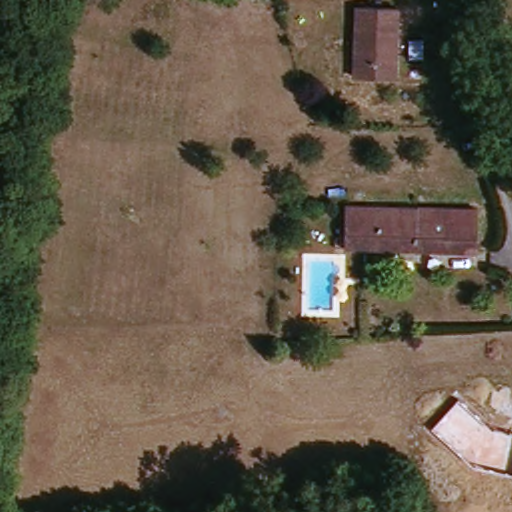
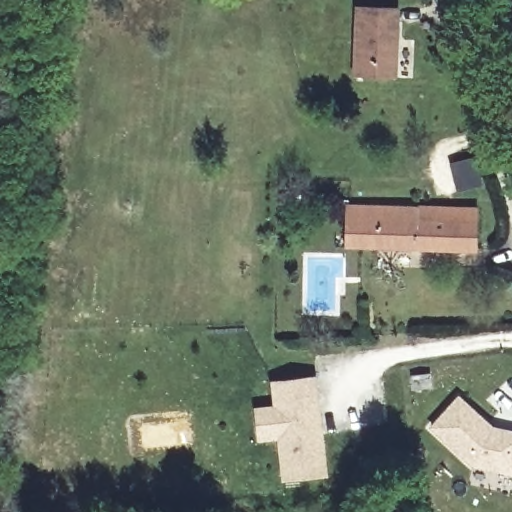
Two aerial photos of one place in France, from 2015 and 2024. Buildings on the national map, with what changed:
unchanged [(359,75),(362,4),(405,5),(402,77),(359,75)]
unchanged [(487,252),(355,248),(358,204),(436,204),(454,206),(487,208),(486,220),(490,220),(487,252)]
new [(323,471),(282,477),(272,406),(269,382),(311,376),(323,471)]
unchanged [(512,431),(512,474),(471,466),(430,428),(458,398),(491,428),(512,431)]
new [(276,436),(257,438),(253,408),(272,406),(276,436)]

